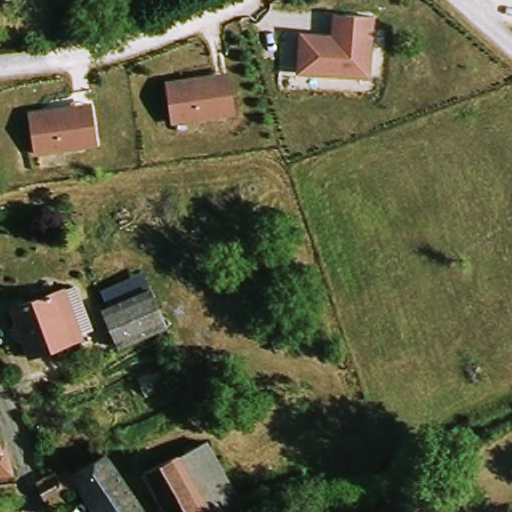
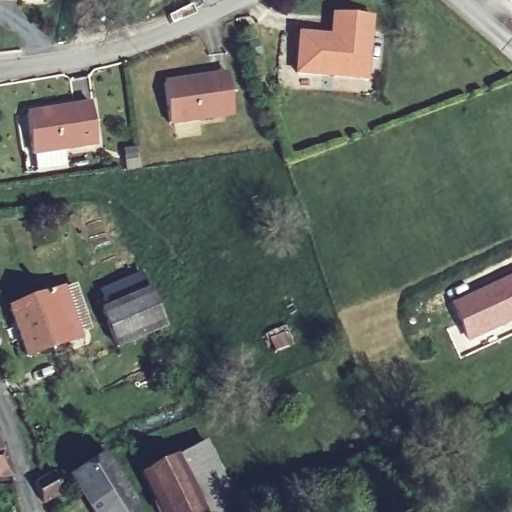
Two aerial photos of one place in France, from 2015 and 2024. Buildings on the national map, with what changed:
unchanged [(372,78),(298,72),(301,30),(334,31),(334,10),(376,13),(372,78)]
unchanged [(226,73),(233,116),(168,125),(163,81),(226,73)]
unchanged [(88,104),(95,147),(33,156),(25,113),(88,104)]
new [(451,304),(512,276),(512,322),(469,343),(451,304)]
unchanged [(79,333),(24,355),(6,310),(60,288),(79,333)]
unchanged [(116,346),(99,310),(146,289),(163,325),(116,346)]
unchanged [(203,444),(234,503),(217,512),(202,512),(173,459),(203,444)]
unchanged [(1,449),(4,449),(15,477),(0,478),(0,446),(1,449)]
unchanged [(68,473),(102,452),(139,509),(134,512),(93,512),(74,483),(40,500),(31,479),(33,478),(51,469),(53,474),(65,469),(68,473)]
unchanged [(141,476),(173,459),(202,512),(160,512),(141,476)]

